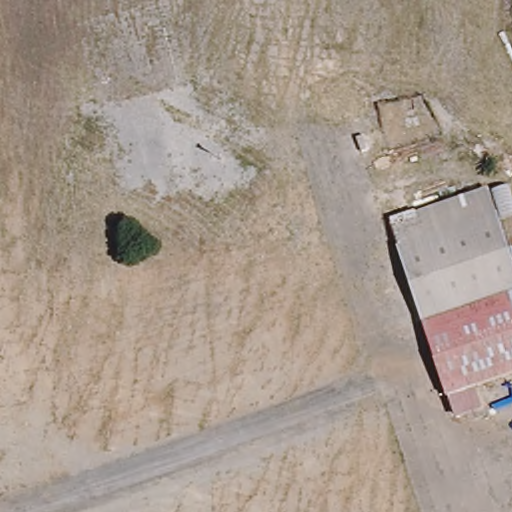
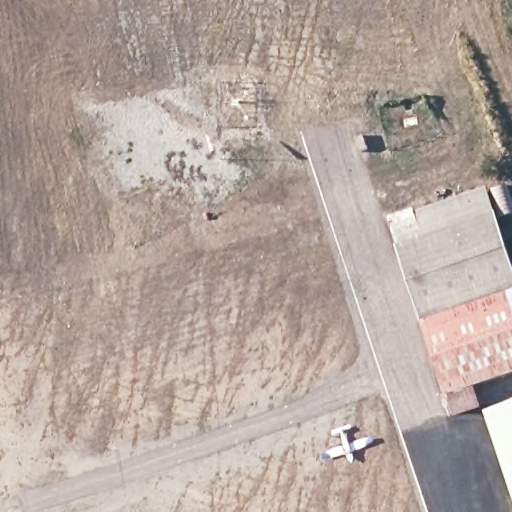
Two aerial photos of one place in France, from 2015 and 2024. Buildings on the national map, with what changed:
unchanged [(512,254),(512,370),(474,381),(484,410),(451,423),(389,218),(489,186),(512,254)]
new [(512,403),(512,483),(488,412),(512,403)]

